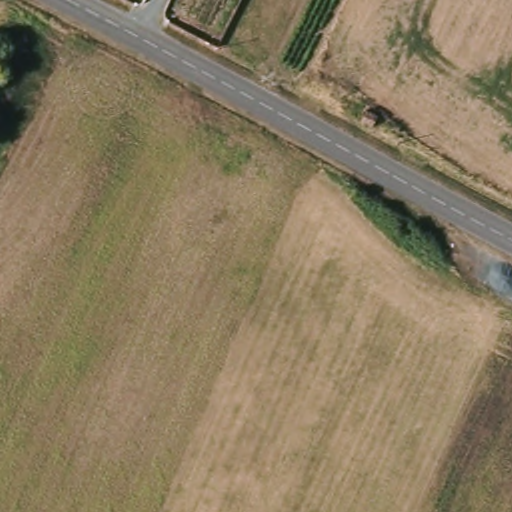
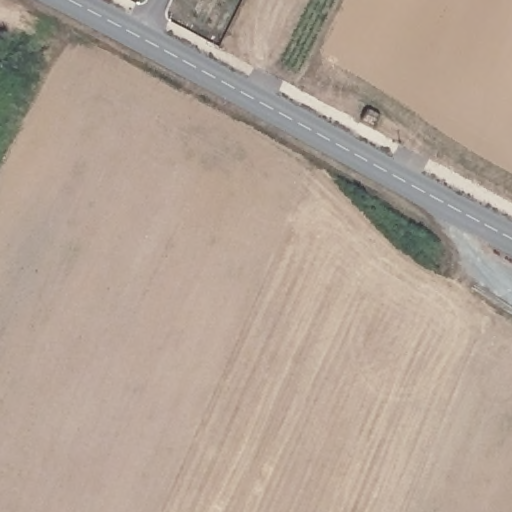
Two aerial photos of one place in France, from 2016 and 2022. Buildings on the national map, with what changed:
unchanged [(357,125),(363,115),(378,121),(372,133),(357,125)]

